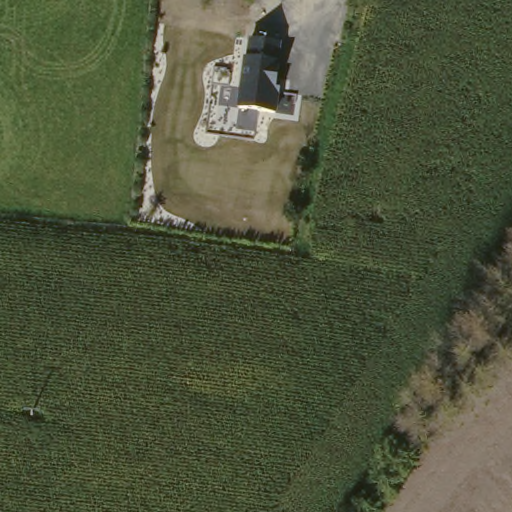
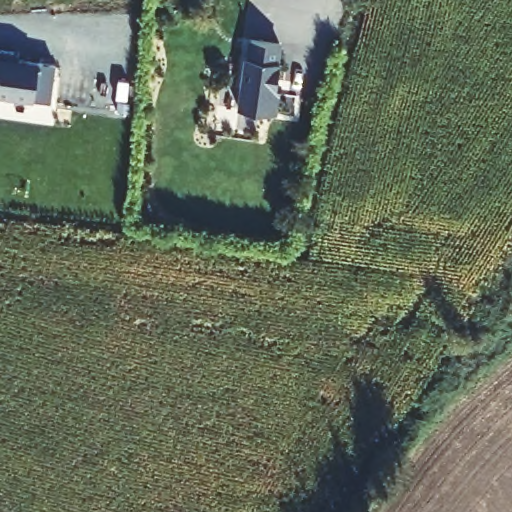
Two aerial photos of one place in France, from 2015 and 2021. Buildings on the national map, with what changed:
unchanged [(269,84),(279,86),(273,119),(227,112),(238,33),(277,39),(269,84)]
new [(10,61),(53,67),(47,105),(0,98),(0,52),(12,54),(10,61)]

